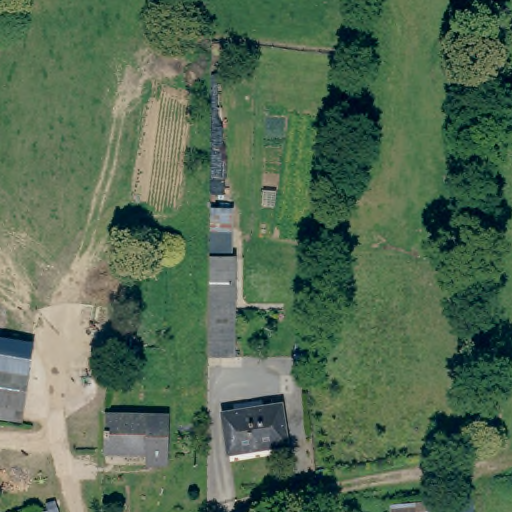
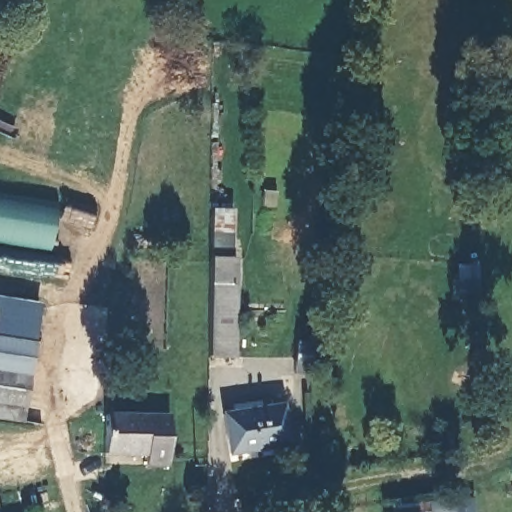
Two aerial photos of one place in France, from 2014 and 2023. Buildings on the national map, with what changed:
new [(50,251),(0,243),(0,195),(59,204),(50,251)]
unchanged [(210,196),(230,196),(230,245),(235,244),(235,252),(237,348),(209,350),(210,248),(210,245),(210,196)]
new [(36,345),(0,339),(0,297),(39,303),(36,345)]
unchanged [(0,339),(36,345),(32,373),(0,369),(0,339)]
unchanged [(298,377),(298,352),(299,342),(317,343),(316,353),(315,377),(298,377)]
unchanged [(0,369),(32,373),(26,419),(0,416),(0,369)]
unchanged [(147,405),(145,444),(105,443),(101,443),(104,403),(147,405)]
unchanged [(282,404),(283,446),(245,446),(234,446),(234,405),(246,405),(282,404)]
unchanged [(170,406),(169,457),(144,457),(145,444),(147,405),(170,406)]
unchanged [(464,505),(463,512),(420,512),(420,503),(464,505)]
unchanged [(56,512),(23,512),(29,511),(54,504),(56,512)]

